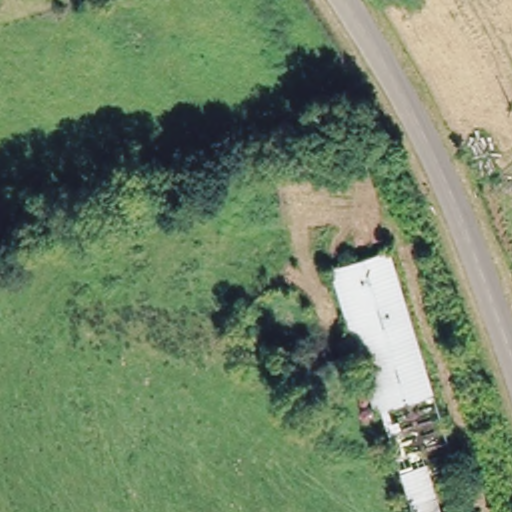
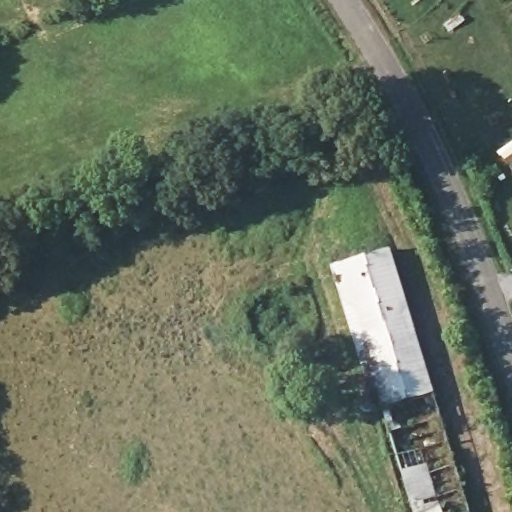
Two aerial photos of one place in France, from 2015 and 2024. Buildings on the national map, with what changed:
unchanged [(385,246),(458,510),(451,512),(405,512),(335,261),(385,246)]

